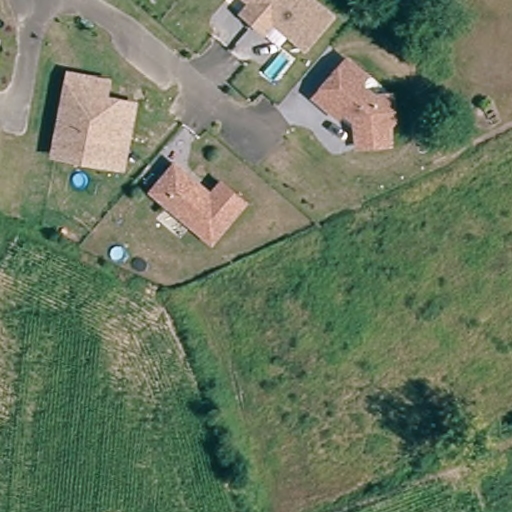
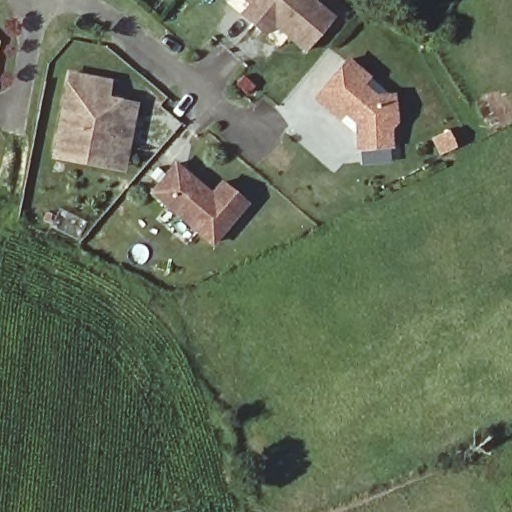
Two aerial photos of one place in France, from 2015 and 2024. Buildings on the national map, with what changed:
unchanged [(244,16),(253,6),(246,0),(278,0),(255,26),(244,16)]
unchanged [(308,52),(276,25),(267,36),(255,26),(278,0),(312,0),(336,20),(308,52)]
unchanged [(396,118),(390,125),(392,143),(359,145),(357,120),(345,109),(340,115),(317,95),(349,57),(368,74),(362,81),(380,98),(395,94),(396,118)]
unchanged [(127,171),(52,157),(68,70),(114,79),(112,95),(140,101),(127,171)]
unchanged [(208,198),(223,182),(246,204),(210,243),(152,190),(177,162),(205,189),(202,192),(208,198)]

